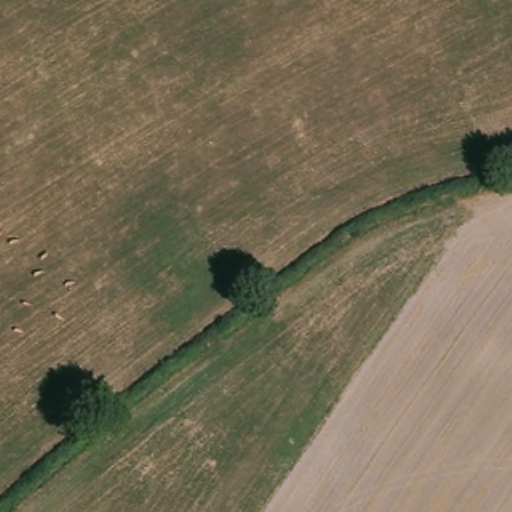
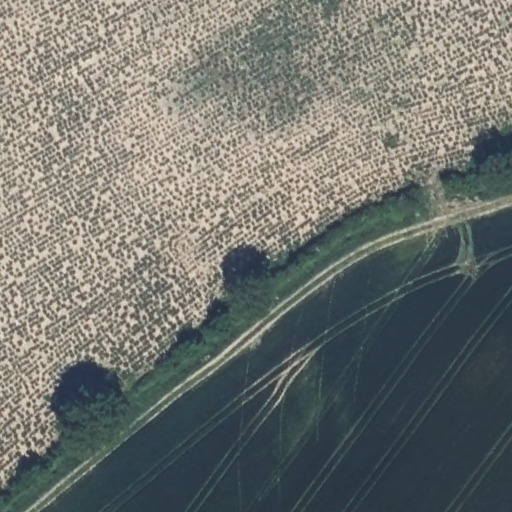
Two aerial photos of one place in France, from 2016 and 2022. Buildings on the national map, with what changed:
[]

